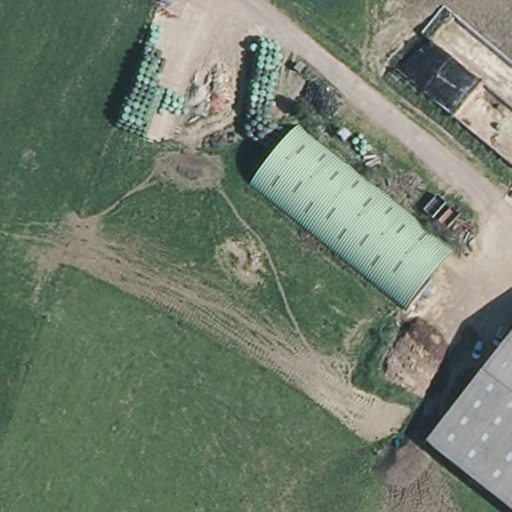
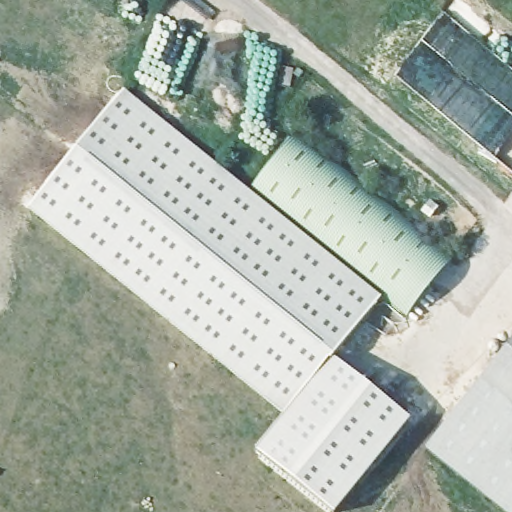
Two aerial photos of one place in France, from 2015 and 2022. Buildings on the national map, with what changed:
new [(336,512),(332,512),(256,452),(285,416),(27,208),(123,90),(249,192),(380,297),(331,357),(410,420),(336,512)]
unchanged [(455,257),(405,318),(249,192),(298,131),(455,257)]
unchanged [(512,344),(512,512),(504,512),(427,450),(512,344)]

